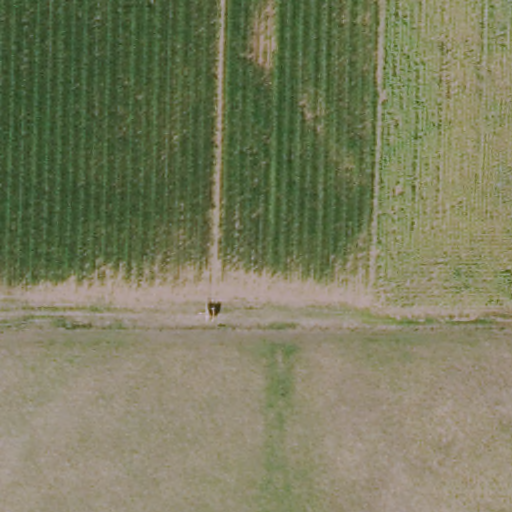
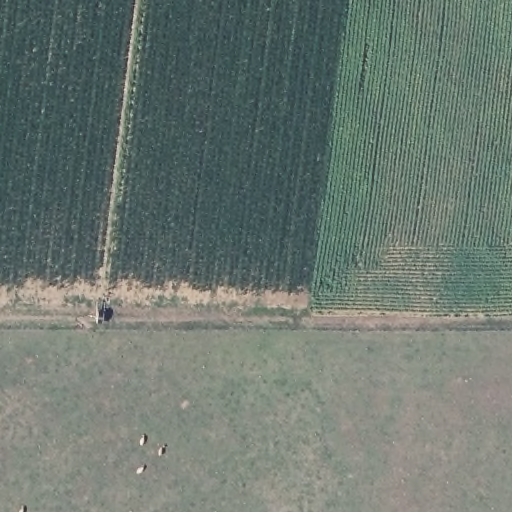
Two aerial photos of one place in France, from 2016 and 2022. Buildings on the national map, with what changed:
[]

